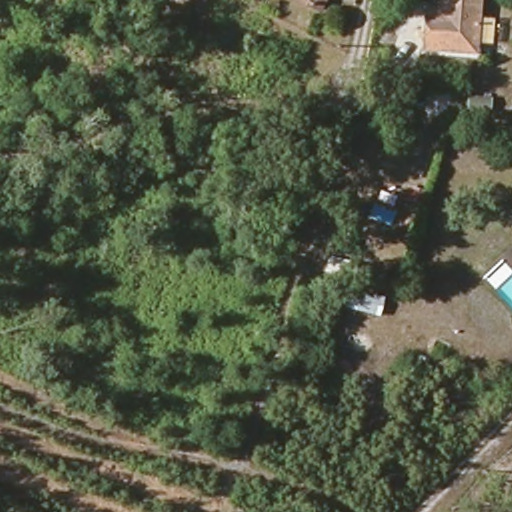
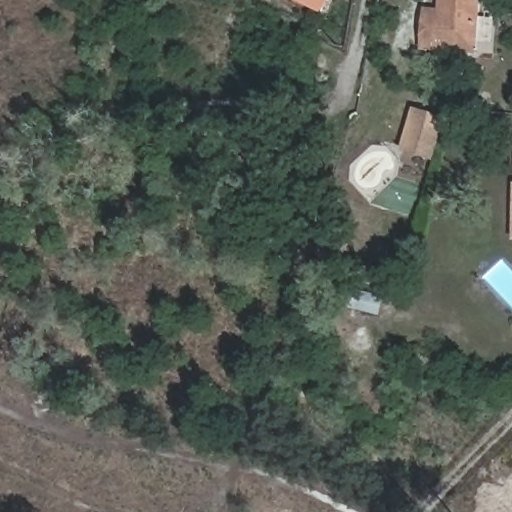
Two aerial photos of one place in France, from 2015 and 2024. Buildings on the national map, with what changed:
unchanged [(302,0),(324,0),(320,9),(302,0)]
unchanged [(432,52),(435,14),(450,15),(451,3),(451,0),(490,0),(486,57),(432,52)]
new [(434,162),(400,152),(413,108),(447,118),(434,162)]

